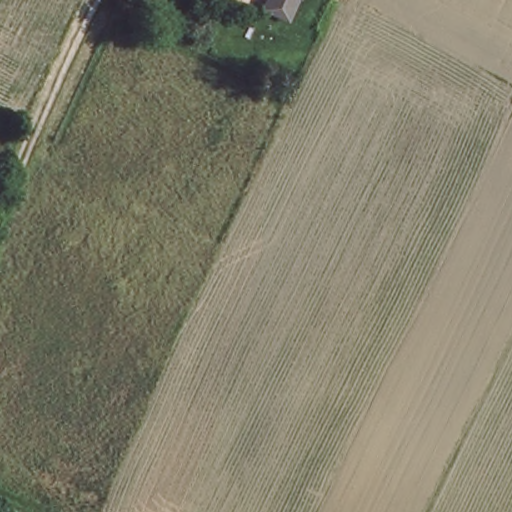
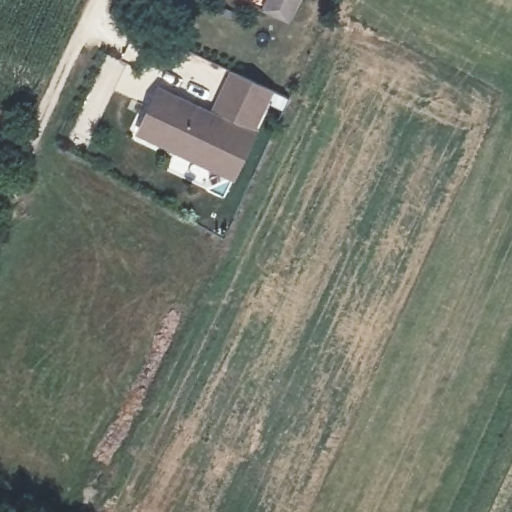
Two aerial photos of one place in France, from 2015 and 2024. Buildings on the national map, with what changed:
unchanged [(268,0),(299,0),(288,24),(263,11),(268,0)]
new [(158,85),(212,109),(230,67),(272,87),(234,174),(138,130),(158,85)]

